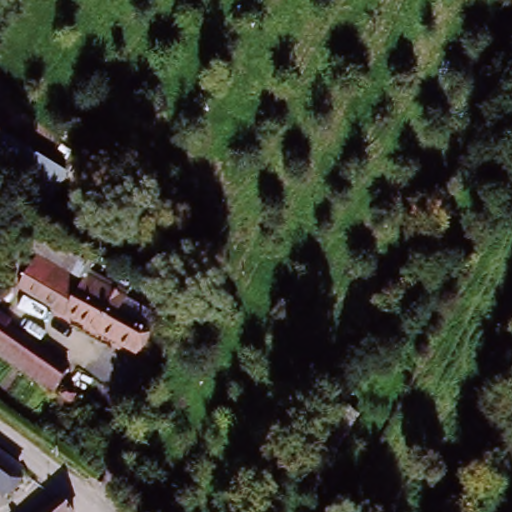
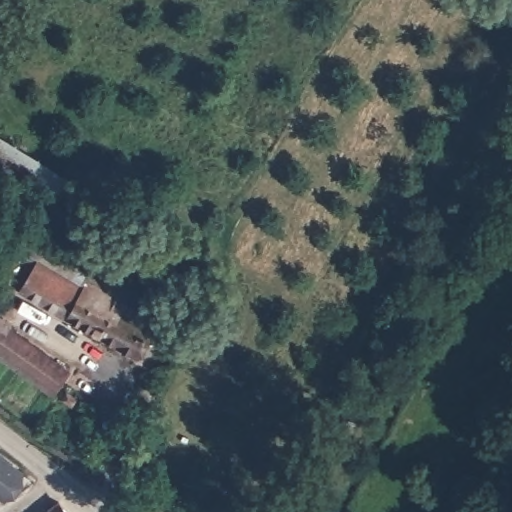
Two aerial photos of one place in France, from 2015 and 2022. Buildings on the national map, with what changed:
unchanged [(63,177),(52,201),(40,222),(6,200),(27,158),(63,177)]
unchanged [(98,226),(85,247),(40,222),(52,201),(98,226)]
unchanged [(27,270),(93,304),(83,323),(18,288),(27,270)]
unchanged [(95,301),(97,302),(104,290),(126,301),(119,314),(147,329),(136,350),(83,323),(93,304),(95,301)]
unchanged [(60,388),(27,366),(0,347),(0,319),(9,326),(39,347),(70,369),(60,388)]
unchanged [(375,385),(357,376),(371,348),(388,357),(375,385)]
unchanged [(341,403),(360,413),(329,471),(310,460),(341,403)]
unchanged [(22,466),(3,493),(0,491),(0,450),(22,466)]
unchanged [(50,512),(63,501),(73,512),(50,512)]

